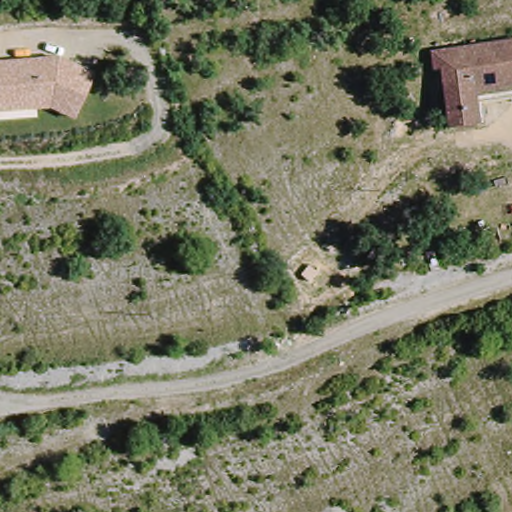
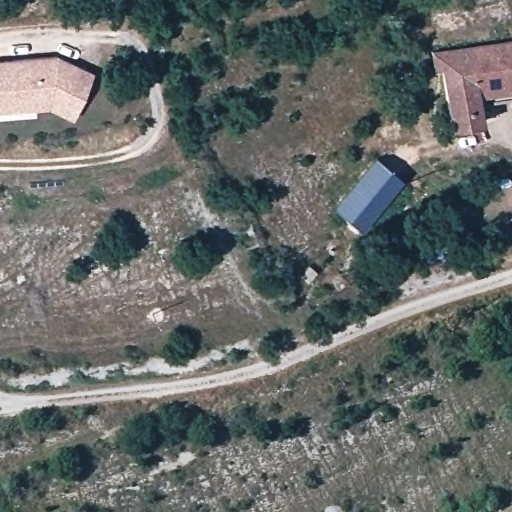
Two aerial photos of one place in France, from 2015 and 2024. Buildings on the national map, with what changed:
unchanged [(512,38),(512,86),(479,91),(484,119),(449,125),(440,67),(434,69),(432,50),(512,38)]
unchanged [(92,72),(71,119),(49,109),(0,112),(0,60),(64,55),(92,72)]
new [(377,157),(402,179),(361,228),(335,207),(377,157)]

